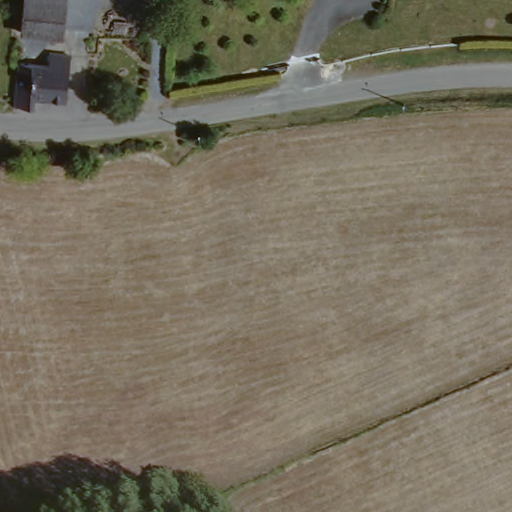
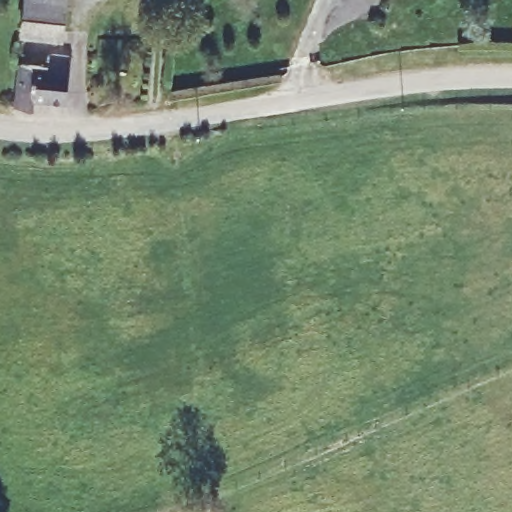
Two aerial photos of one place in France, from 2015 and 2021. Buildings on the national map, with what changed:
unchanged [(61,35),(24,28),(29,0),(68,0),(61,35)]
unchanged [(53,62),(54,52),(67,54),(75,55),(69,100),(39,96),(37,107),(19,104),(20,96),(24,57),(46,61),(53,62)]

